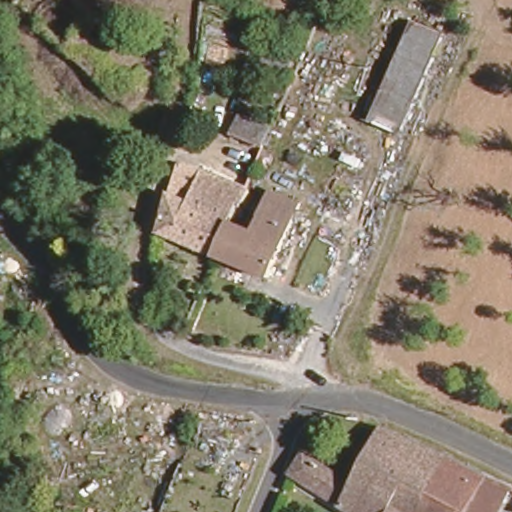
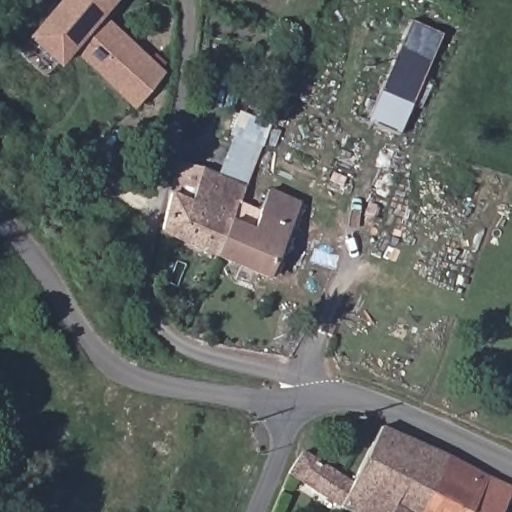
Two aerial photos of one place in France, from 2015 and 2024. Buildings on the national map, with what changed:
new [(70,51),(55,69),(21,39),(55,0),(115,0),(103,14),(166,73),(133,110),(70,51)]
unchanged [(439,30),(398,131),(366,119),(408,17),(439,30)]
unchanged [(232,132),(239,114),(271,126),(263,145),(232,132)]
unchanged [(231,220),(218,251),(162,229),(169,187),(189,195),(202,163),(247,180),(231,220)]
unchanged [(231,220),(252,229),(268,185),(299,196),(269,272),(218,251),(231,220)]
unchanged [(290,472),(300,448),(350,482),(380,425),(447,457),(420,512),(350,512),(290,472)]
unchanged [(503,483),(489,512),(420,512),(447,457),(503,483)]

